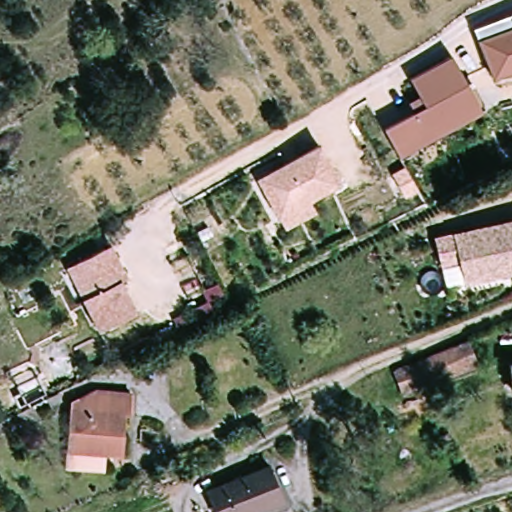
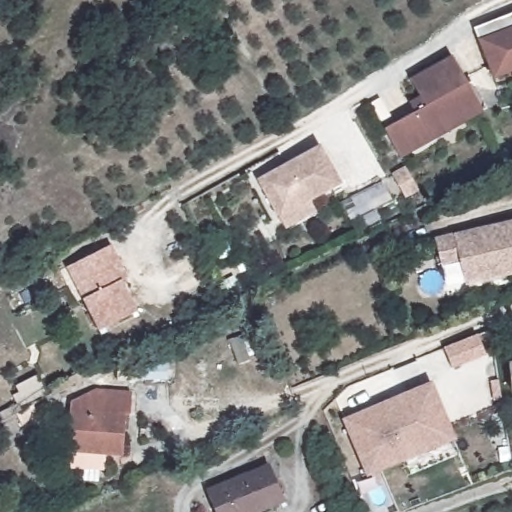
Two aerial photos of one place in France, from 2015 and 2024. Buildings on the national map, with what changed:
unchanged [(498,76),(481,30),(512,16),(512,70),(498,76)]
unchanged [(419,77),(462,55),(477,84),(489,106),(471,116),(406,151),(393,126),(434,104),(419,77)]
unchanged [(282,225),(276,215),(261,187),(259,182),(269,177),(320,150),(337,182),(306,199),(311,210),(282,225)]
unchanged [(512,222),(512,273),(468,285),(462,263),(443,268),(436,243),(512,222)]
unchanged [(120,280),(136,310),(98,330),(81,299),(65,268),(71,265),(104,247),(110,244),(114,250),(128,276),(120,280)]
new [(443,348),(477,334),(487,356),(453,370),(443,348)]
demolished [(461,346),(475,340),(485,365),(472,371),(461,346)]
new [(341,419),(431,381),(456,440),(366,478),(341,419)]
unchanged [(133,445),(123,445),(123,446),(115,455),(105,462),(67,458),(68,439),(76,440),(80,404),(136,407),(133,445)]
unchanged [(214,493),(274,469),(289,502),(265,512),(222,512),(214,493)]

